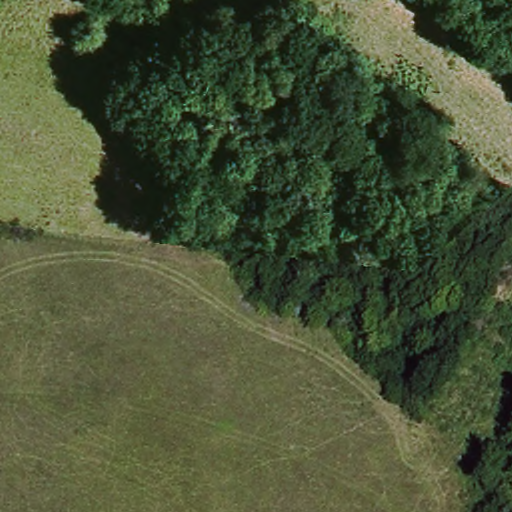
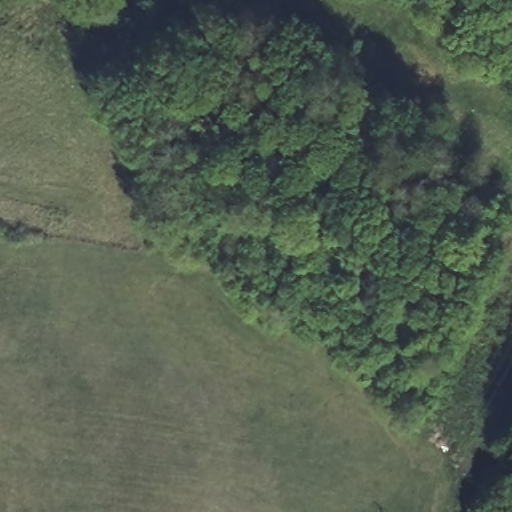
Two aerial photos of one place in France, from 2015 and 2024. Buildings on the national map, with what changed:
[]

